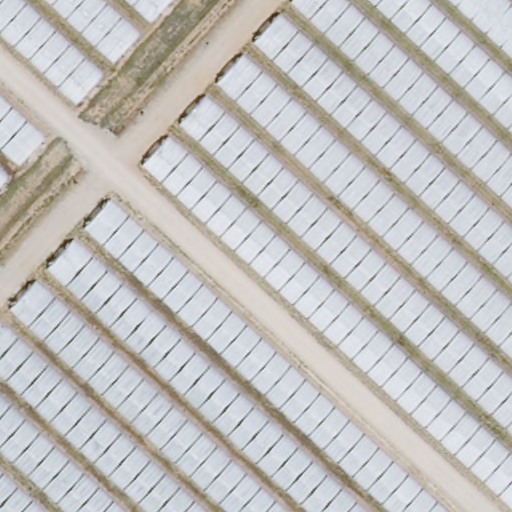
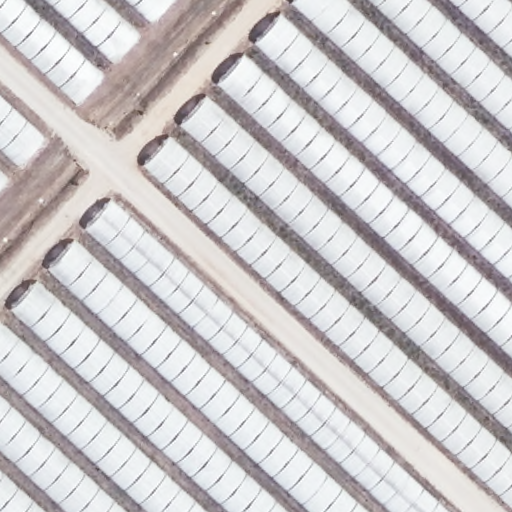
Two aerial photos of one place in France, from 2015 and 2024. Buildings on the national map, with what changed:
unchanged [(0,0),(174,0),(143,34),(77,106),(0,34),(0,0)]
unchanged [(293,0),(512,0),(512,509),(140,168),(293,0)]
unchanged [(0,92),(50,139),(0,193),(0,92)]
unchanged [(0,323),(115,198),(451,512),(0,512),(0,323)]

